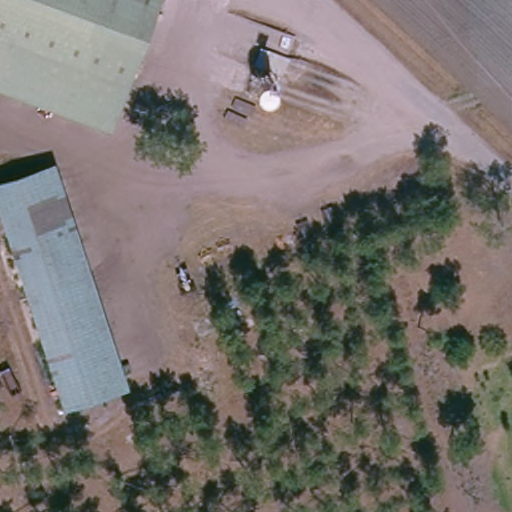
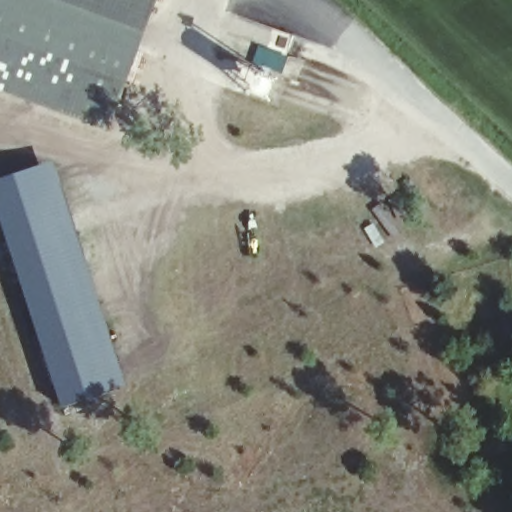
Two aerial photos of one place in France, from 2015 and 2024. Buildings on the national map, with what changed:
unchanged [(133,0),(157,8),(120,103),(0,59),(0,0),(133,0)]
unchanged [(251,83),(255,76),(259,72),(267,70),(276,73),(280,80),(280,90),(276,99),(263,103),(254,94),(251,83)]
unchanged [(127,392),(59,416),(0,228),(0,183),(57,166),(127,392)]

